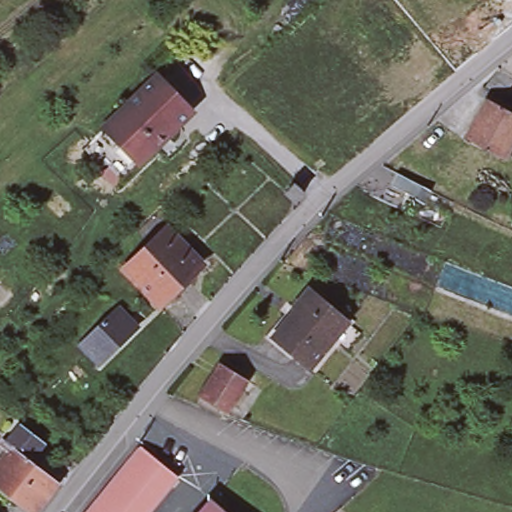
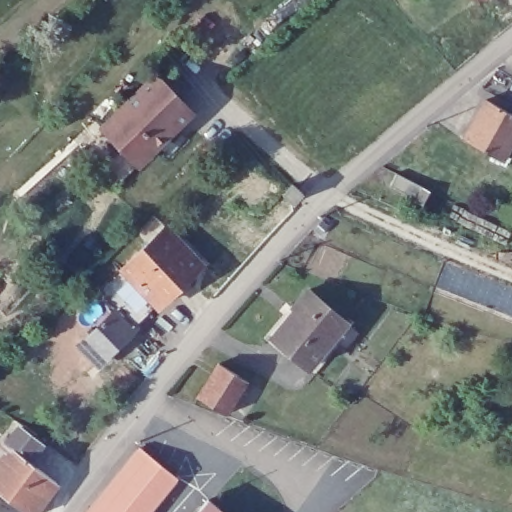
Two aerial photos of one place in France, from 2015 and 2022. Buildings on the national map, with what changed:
unchanged [(479,3),(478,0),(483,0),(479,3)]
unchanged [(201,111),(132,178),(97,142),(166,75),(201,111)]
unchanged [(512,146),(505,159),(466,138),(488,98),(512,111),(512,146)]
unchanged [(304,192),(295,203),(286,194),(296,184),(304,192)]
unchanged [(203,263),(161,306),(125,269),(168,227),(203,263)]
unchanged [(349,321),(309,369),(294,356),(294,355),(271,335),(309,289),(349,321)]
unchanged [(137,328),(101,363),(81,343),(117,308),(137,328)]
unchanged [(248,380),(228,414),(199,397),(220,362),(248,380)]
unchanged [(41,444),(29,460),(58,483),(36,512),(28,512),(0,490),(0,445),(3,440),(6,442),(18,427),(41,444)]
unchanged [(178,476),(149,512),(87,512),(141,446),(178,476)]
unchanged [(225,512),(200,512),(210,500),(225,512)]

